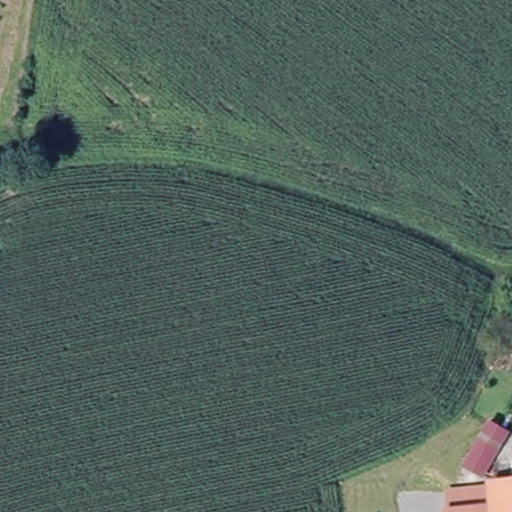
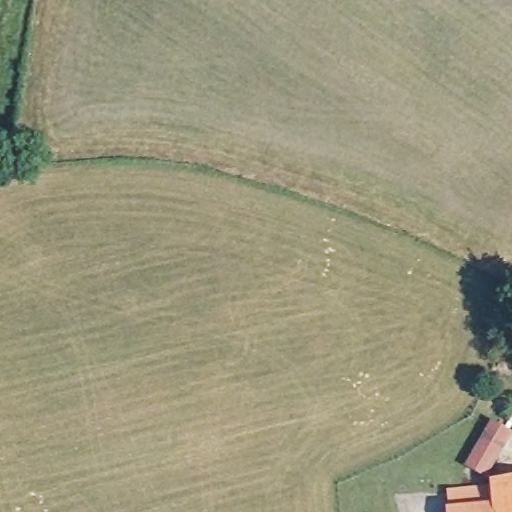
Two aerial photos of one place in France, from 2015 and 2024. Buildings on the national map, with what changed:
unchanged [(466,463),(491,418),(512,430),(512,440),(492,476),(466,463)]
unchanged [(507,512),(505,481),(512,480),(512,512),(507,512)]
unchanged [(450,509),(448,489),(495,487),(498,512),(446,512),(445,509),(450,509)]

